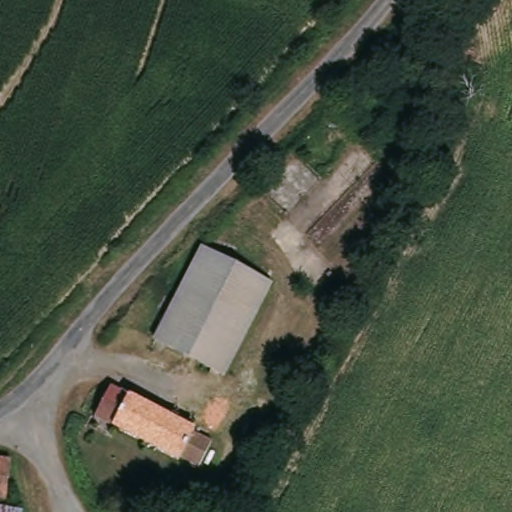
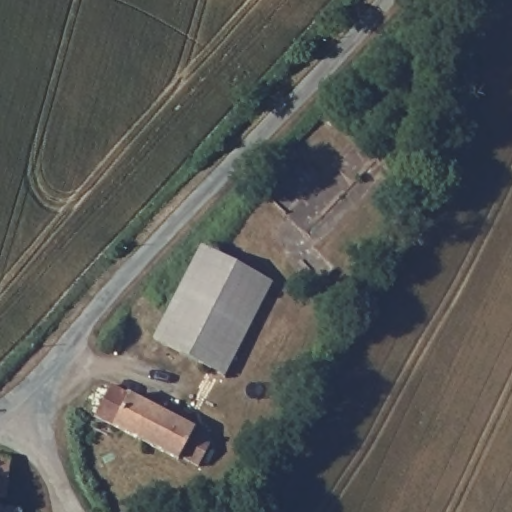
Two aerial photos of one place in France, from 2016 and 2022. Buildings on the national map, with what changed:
unchanged [(272,281),(226,372),(154,335),(201,245),(272,281)]
unchanged [(106,387),(191,428),(189,432),(209,442),(207,446),(221,452),(213,468),(200,461),(197,466),(177,456),(174,461),(91,418),(106,387)]
unchanged [(4,506),(0,506),(0,461),(8,462),(4,506)]
unchanged [(0,512),(0,510),(11,512),(0,512)]

